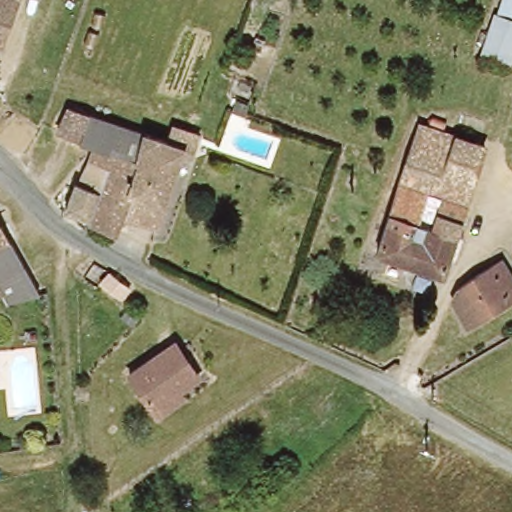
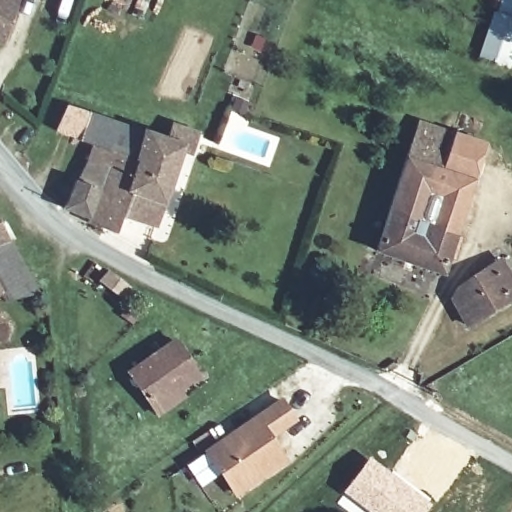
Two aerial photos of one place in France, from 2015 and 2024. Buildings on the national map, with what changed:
unchanged [(0,30),(0,0),(12,0),(0,30)]
unchanged [(506,70),(474,59),(489,12),(493,0),(512,0),(512,50),(506,70)]
unchanged [(119,212),(113,231),(83,219),(101,167),(76,154),(81,144),(44,131),(53,104),(145,134),(119,212)]
unchanged [(36,131),(19,153),(0,138),(0,119),(8,109),(36,131)]
unchanged [(373,250),(414,126),(482,149),(436,273),(373,250)]
unchanged [(180,155),(158,225),(119,212),(145,134),(169,141),(173,129),(190,135),(200,138),(194,159),(180,155)]
unchanged [(83,219),(59,206),(76,154),(101,167),(83,219)]
unchanged [(0,238),(0,235),(1,237),(0,238)]
unchanged [(30,291),(0,302),(0,238),(1,237),(30,291)]
unchanged [(501,321),(493,308),(464,326),(446,296),(456,283),(494,266),(512,302),(512,316),(501,321)]
unchanged [(129,285),(120,299),(98,283),(109,270),(129,285)]
unchanged [(155,415),(147,406),(124,372),(169,341),(191,373),(174,386),(182,396),(155,415)]
new [(234,497),(204,450),(283,396),(298,420),(273,438),(288,460),(234,497)]
new [(340,492),(368,455),(431,502),(423,512),(348,512),(337,502),(343,494),(340,492)]

